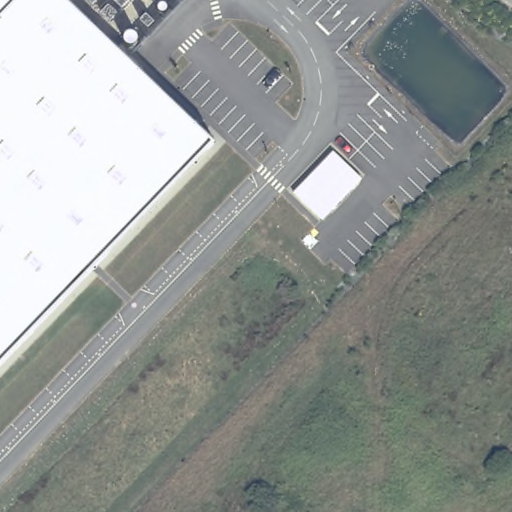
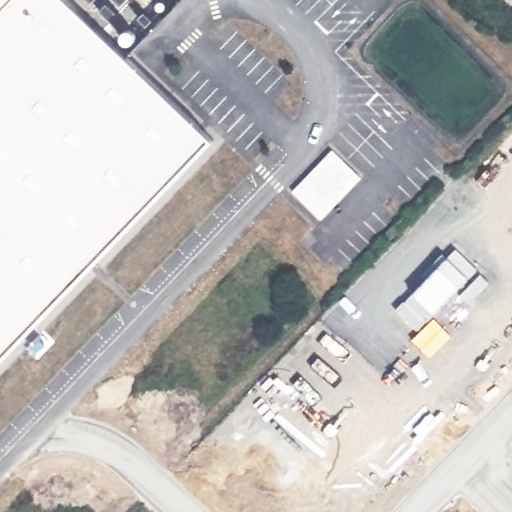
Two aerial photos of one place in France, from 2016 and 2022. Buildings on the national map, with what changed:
unchanged [(215,140),(0,364),(0,0),(72,0),(215,140)]
unchanged [(365,176),(323,220),(293,191),(332,148),(365,176)]

